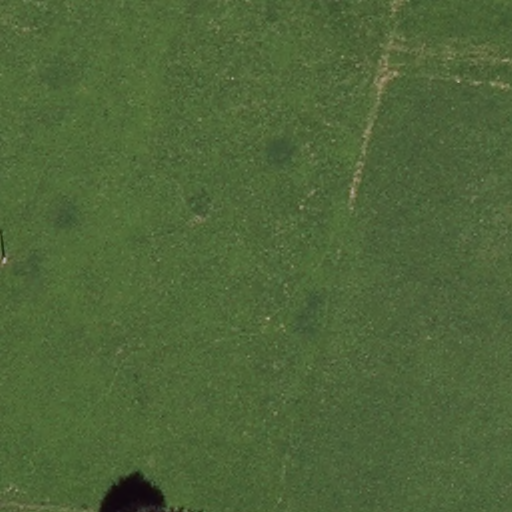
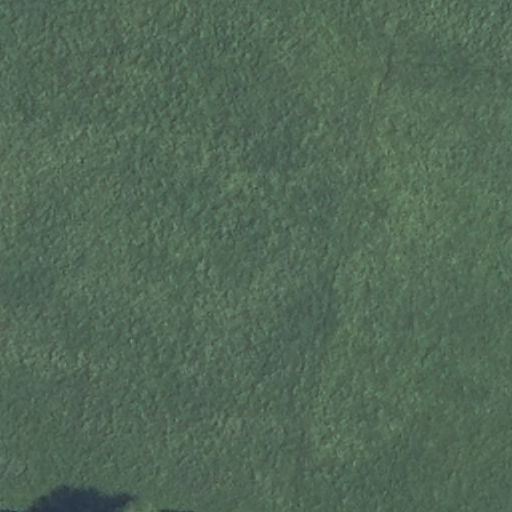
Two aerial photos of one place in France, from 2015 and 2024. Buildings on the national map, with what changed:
[]

